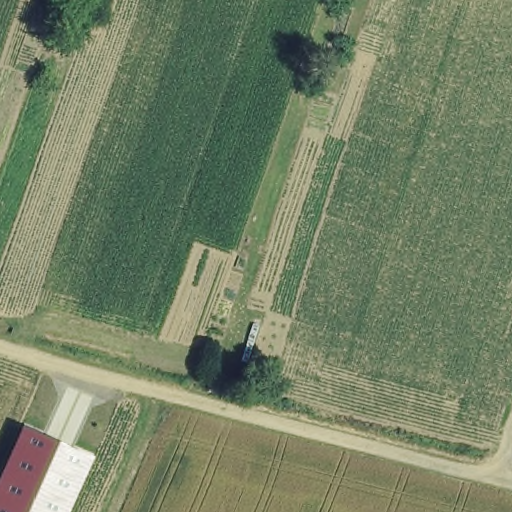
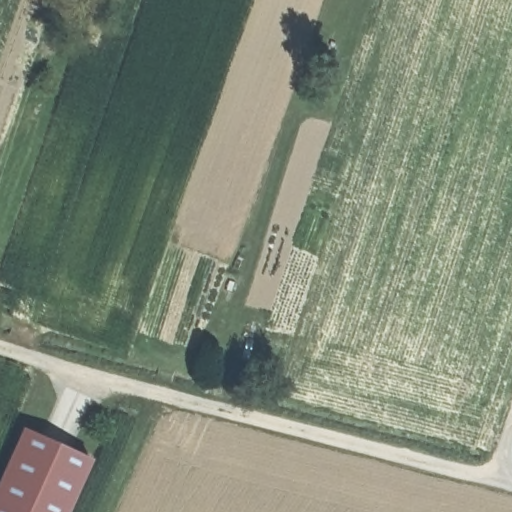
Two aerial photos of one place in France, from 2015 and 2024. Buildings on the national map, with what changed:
unchanged [(92,459),(67,512),(0,512),(0,473),(20,428),(92,459)]

